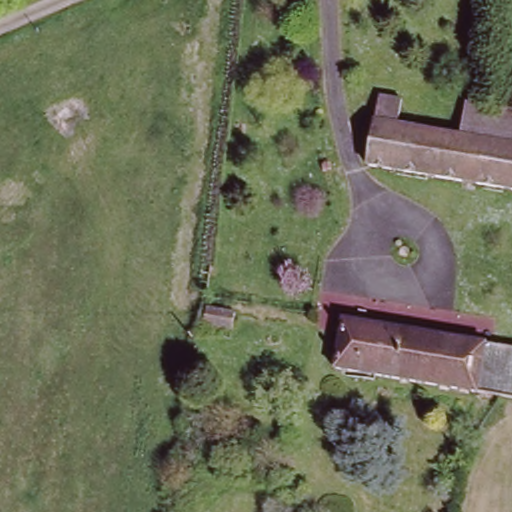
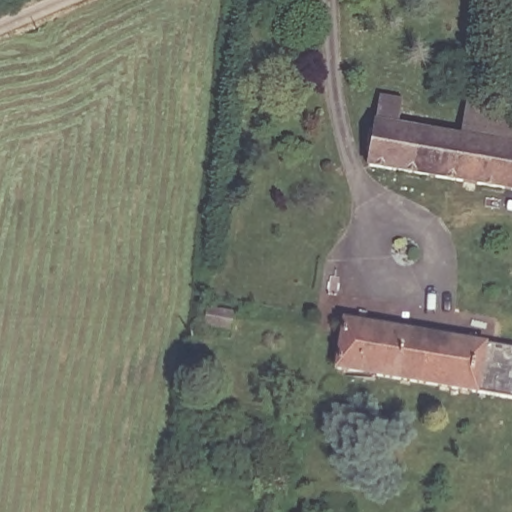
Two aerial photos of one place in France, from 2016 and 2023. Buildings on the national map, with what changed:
unchanged [(401,99),(402,120),(460,129),(467,101),(512,110),(512,186),(367,166),(382,95),(401,99)]
unchanged [(338,370),(346,320),(512,346),(512,397),(338,370)]

